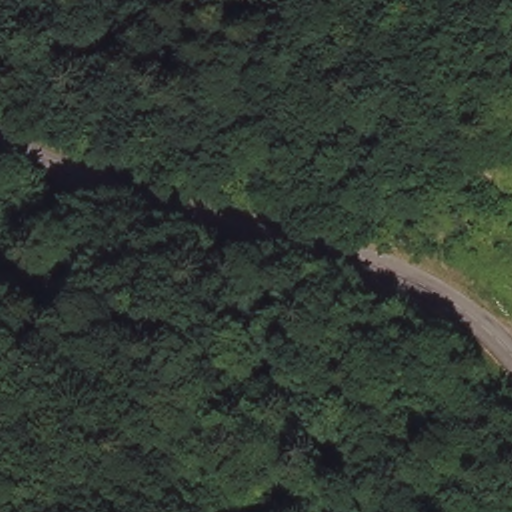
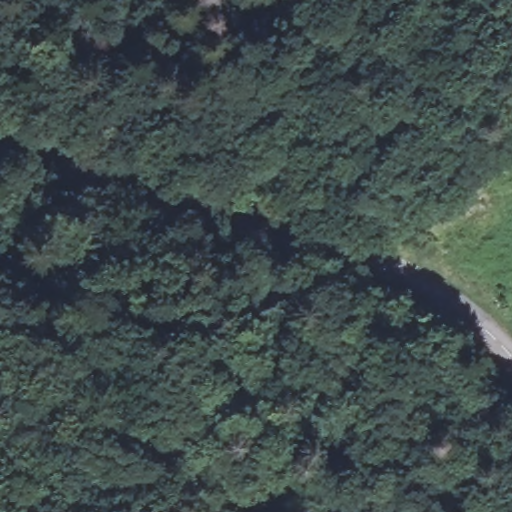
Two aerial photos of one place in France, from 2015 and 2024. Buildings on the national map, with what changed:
[]

